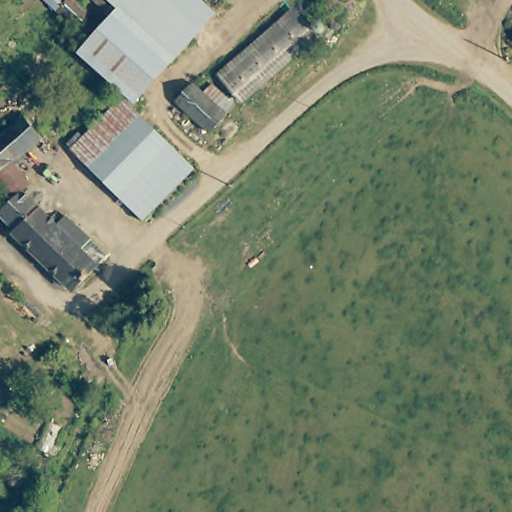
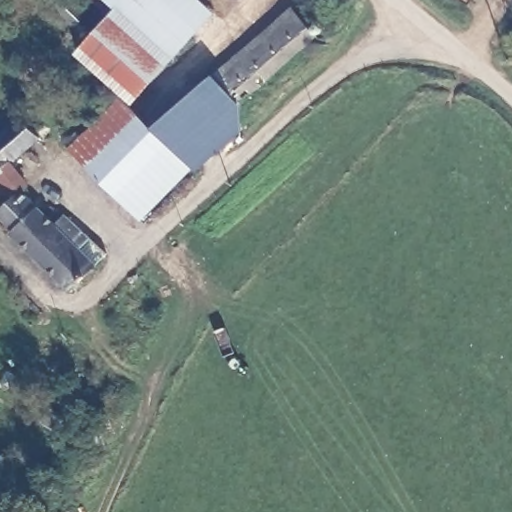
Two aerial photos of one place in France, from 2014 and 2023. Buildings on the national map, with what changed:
unchanged [(60,0),(74,11),(62,23),(33,0),(60,0)]
unchanged [(174,56),(128,19),(116,8),(106,0),(181,0),(205,19),(174,56)]
unchanged [(292,4),(320,36),(240,101),(214,69),(292,4)]
unchanged [(77,54),(97,30),(102,25),(114,11),(116,8),(128,19),(174,56),(171,60),(135,103),(82,59),(77,54)]
new [(214,69),(240,101),(241,132),(197,173),(190,164),(151,126),(214,69)]
demolished [(192,138),(160,109),(188,82),(196,90),(205,83),(209,79),(210,78),(231,102),(230,104),(192,138)]
unchanged [(74,153),(125,100),(190,164),(140,216),(74,153)]
unchanged [(0,166),(0,131),(20,111),(39,131),(0,166)]
unchanged [(0,204),(19,185),(55,220),(64,210),(80,225),(103,249),(67,284),(12,230),(15,228),(0,213),(0,204)]

